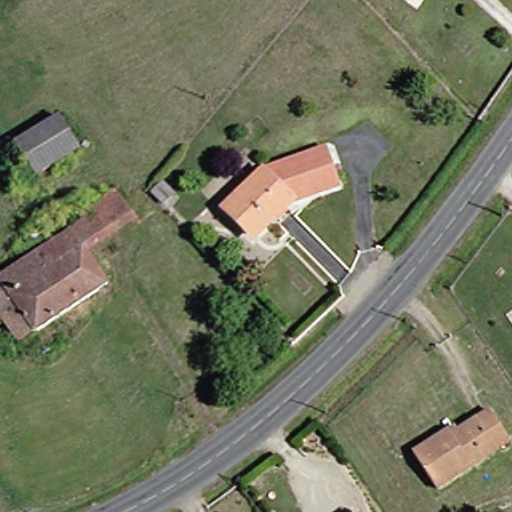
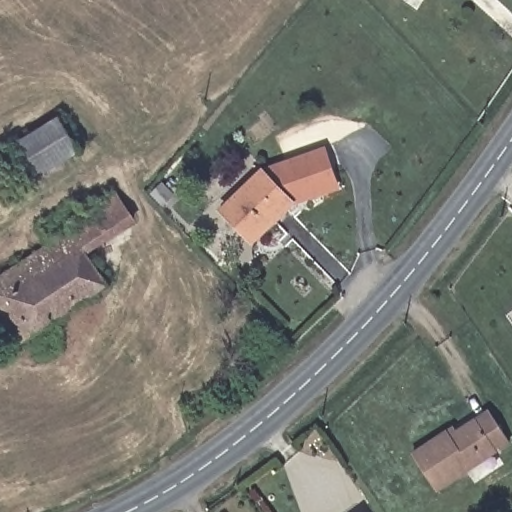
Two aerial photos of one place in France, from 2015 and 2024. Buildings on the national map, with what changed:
unchanged [(21,146),(65,118),(84,150),(41,178),(21,146)]
unchanged [(241,225),(227,210),(266,172),(332,151),(342,187),(296,203),(262,237),(256,241),(241,225)]
unchanged [(75,233),(90,223),(86,216),(119,194),(138,222),(90,253),(75,233)]
unchanged [(3,312),(0,313),(0,278),(2,277),(5,280),(75,233),(90,253),(112,286),(38,336),(26,344),(3,312)]
unchanged [(512,446),(444,493),(420,457),(454,434),(458,438),(496,412),(512,437),(512,446)]
unchanged [(353,512),(348,512),(352,509),(353,512)]

